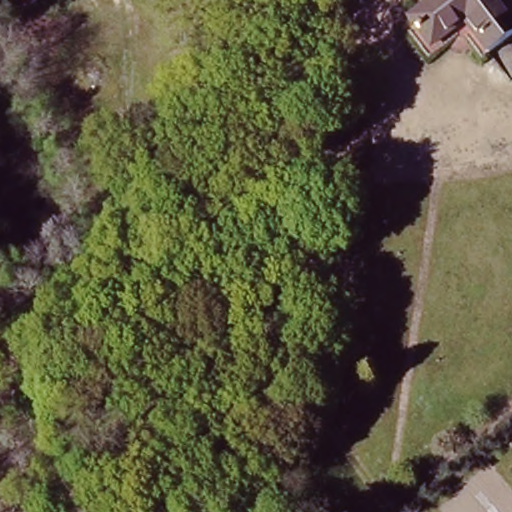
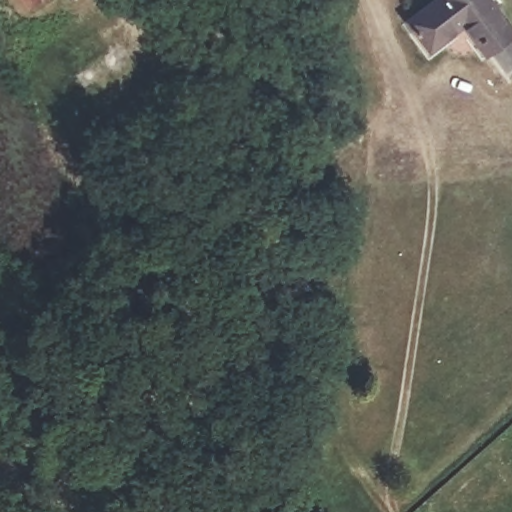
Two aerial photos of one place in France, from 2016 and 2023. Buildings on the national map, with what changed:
unchanged [(7,9),(4,0),(38,0),(7,9)]
unchanged [(435,53),(417,31),(446,8),(440,0),(490,0),(512,27),(512,32),(484,55),(464,30),(435,53)]

